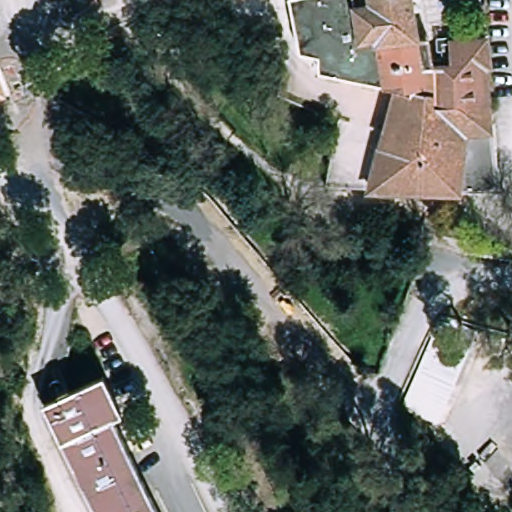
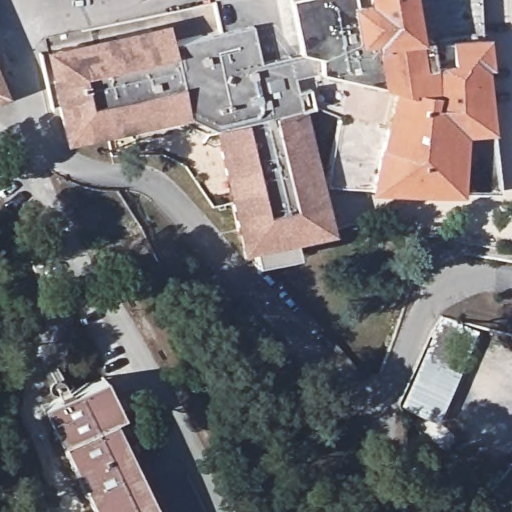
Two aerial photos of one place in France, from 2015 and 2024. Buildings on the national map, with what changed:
new [(332,232),(293,240),(296,255),(255,263),(253,248),(239,251),(213,127),(192,117),(65,144),(45,49),(170,22),(172,42),(253,26),(261,61),(301,52),(289,0),(318,0),(324,41),(312,42),(313,54),(316,77),(349,84),(393,93),(365,187),(323,184),(332,232)]
unchanged [(449,67),(450,44),(485,44),(487,68),(483,70),(497,197),(365,191),(393,93),(316,77),(313,54),(312,42),(324,41),(318,0),(409,0),(420,67),(449,67)]
demolished [(239,27),(256,36),(248,55),(230,46),(239,27)]
unchanged [(1,96),(0,96),(0,93),(1,96)]
unchanged [(475,330),(447,420),(409,408),(437,318),(475,330)]
unchanged [(512,331),(512,337),(510,336),(512,331)]
unchanged [(46,406),(101,377),(119,415),(111,417),(158,512),(96,512),(46,406)]

